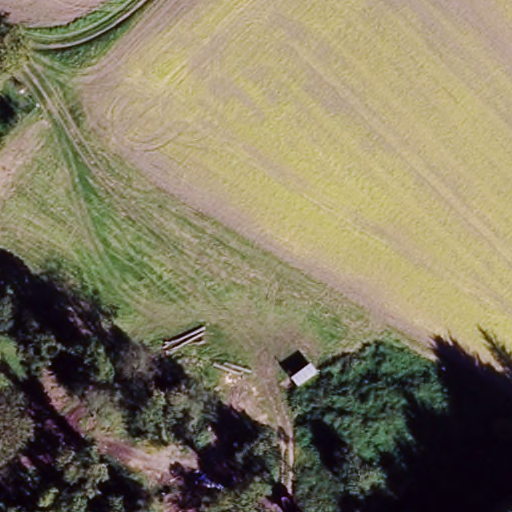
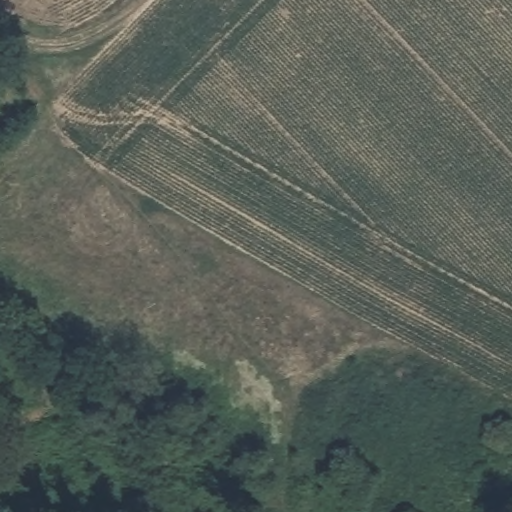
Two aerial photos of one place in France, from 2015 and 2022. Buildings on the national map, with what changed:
[]

